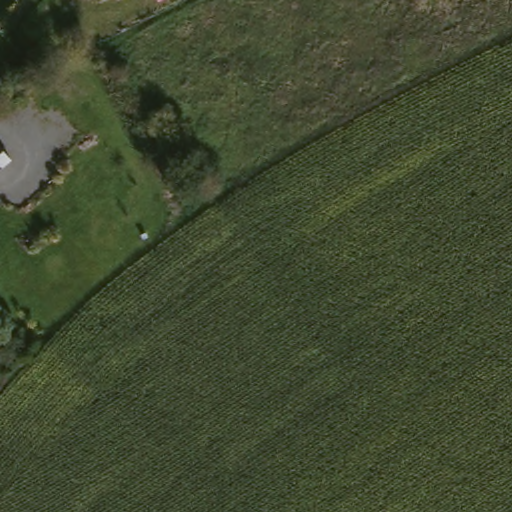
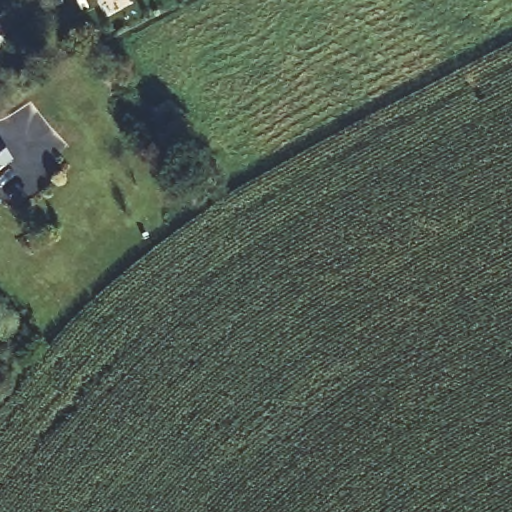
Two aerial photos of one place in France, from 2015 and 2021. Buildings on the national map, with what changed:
unchanged [(0,167),(0,140),(13,156),(0,167)]

